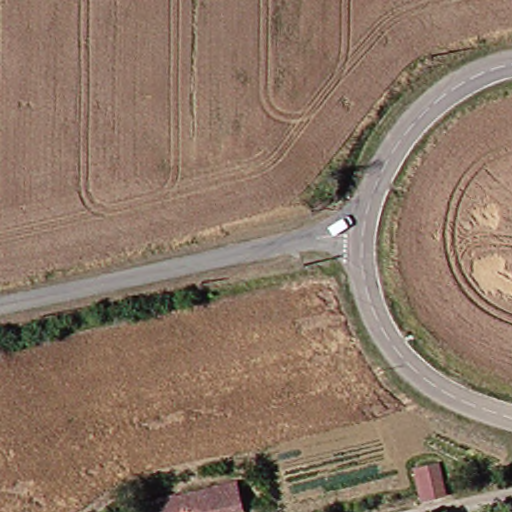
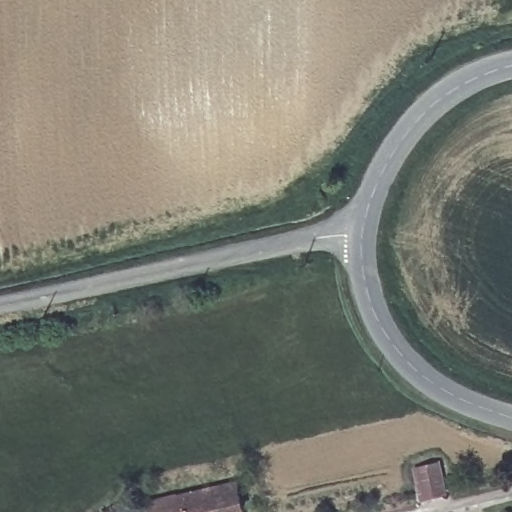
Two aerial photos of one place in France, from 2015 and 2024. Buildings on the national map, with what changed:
unchanged [(433,494),(426,462),(448,458),(455,489),(433,494)]
unchanged [(238,484),(241,497),(244,512),(187,512),(185,494),(212,489),(238,484)]
unchanged [(185,494),(187,512),(153,512),(151,500),(185,494)]

